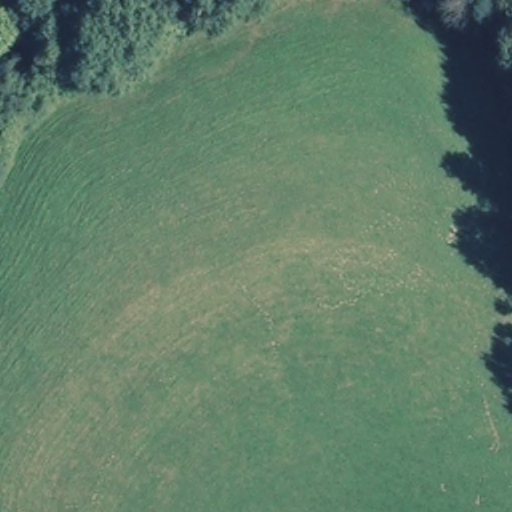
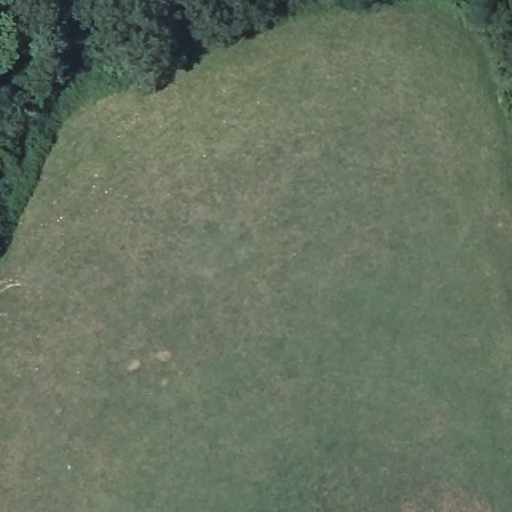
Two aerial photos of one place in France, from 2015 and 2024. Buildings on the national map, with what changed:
[]

